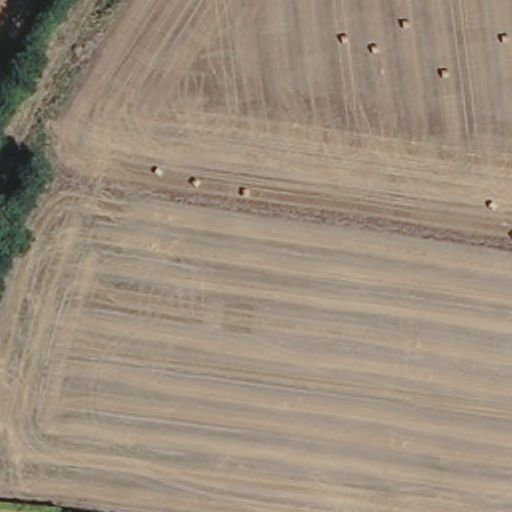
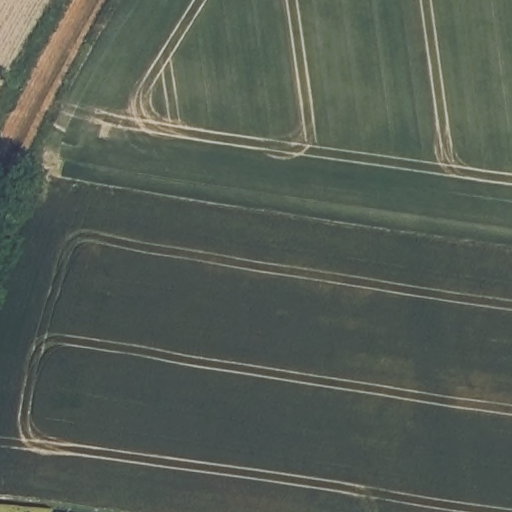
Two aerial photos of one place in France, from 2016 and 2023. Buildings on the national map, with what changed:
[]

